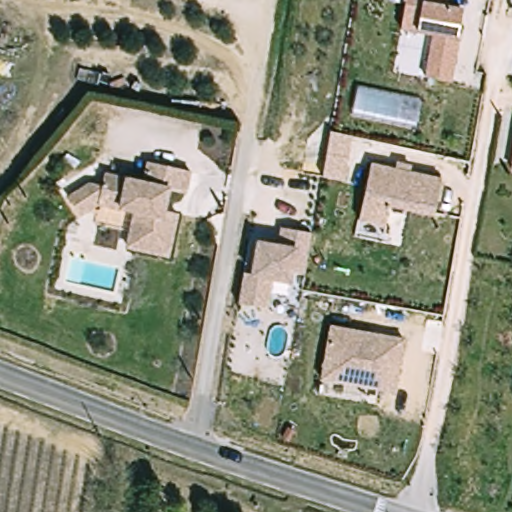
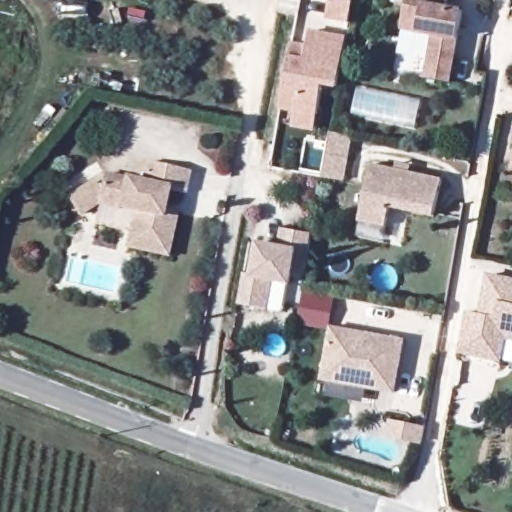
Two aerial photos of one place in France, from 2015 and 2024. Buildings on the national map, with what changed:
new [(353,2),(348,25),(325,20),(328,0),(343,0),(353,2)]
unchanged [(446,5),(462,9),(450,79),(425,75),(433,31),(400,26),(405,0),(447,0),(446,5)]
new [(346,37),(337,90),(322,87),(314,131),(292,128),(294,113),(278,111),(291,42),(306,45),(308,30),(346,37)]
new [(326,156),(331,132),(352,136),(348,159),(344,181),(322,180),(326,156)]
demolished [(314,158),(335,161),(331,185),(310,180),(314,158)]
unchanged [(145,184),(150,162),(192,171),(188,194),(170,190),(166,210),(179,213),(170,255),(129,247),(137,212),(100,205),(82,217),(70,200),(89,184),(103,187),(106,175),(145,184)]
unchanged [(370,164),(442,178),(434,214),(389,205),(385,225),(359,220),(370,164)]
unchanged [(294,270),(292,280),(274,277),(269,307),(241,302),(247,271),(255,272),(261,241),(281,245),(284,226),(315,231),(307,272),(294,270)]
new [(501,354),(461,347),(469,307),(480,309),(484,295),(487,270),(512,275),(512,356),(501,354)]
new [(332,295),(327,330),(298,325),(303,291),(332,295)]
unchanged [(326,375),(335,327),(408,340),(398,393),(371,388),(325,380),(326,375)]

